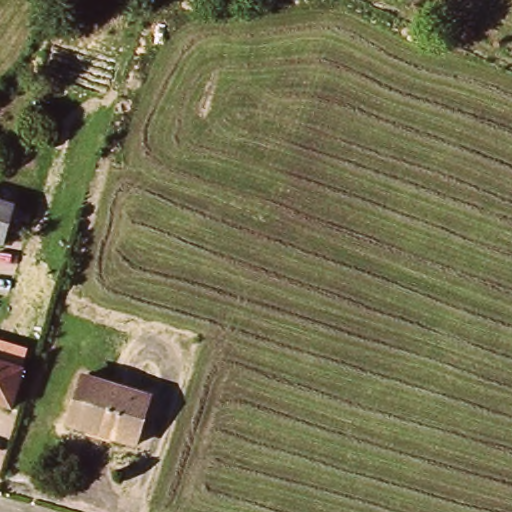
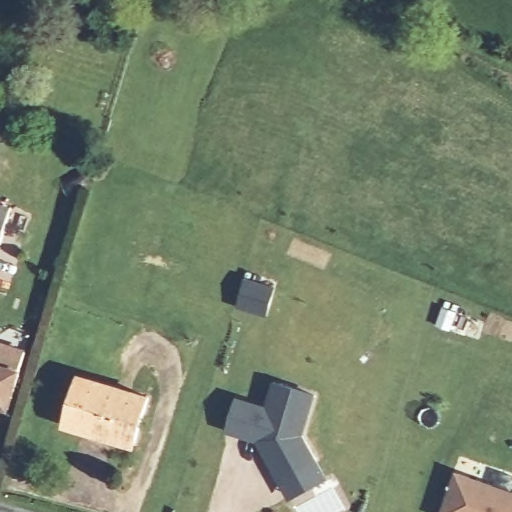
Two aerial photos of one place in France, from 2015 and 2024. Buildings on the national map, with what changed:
unchanged [(15,202),(3,241),(0,240),(0,199),(15,202)]
new [(27,347),(20,372),(0,366),(0,339),(27,347)]
unchanged [(0,412),(0,366),(20,372),(7,414),(0,412)]
unchanged [(88,379),(150,399),(139,443),(135,448),(73,426),(88,379)]
new [(270,409),(278,383),(315,395),(304,433),(327,475),(291,496),(259,439),(229,430),(238,399),(270,409)]
new [(512,512),(444,512),(458,471),(512,490),(512,512)]

